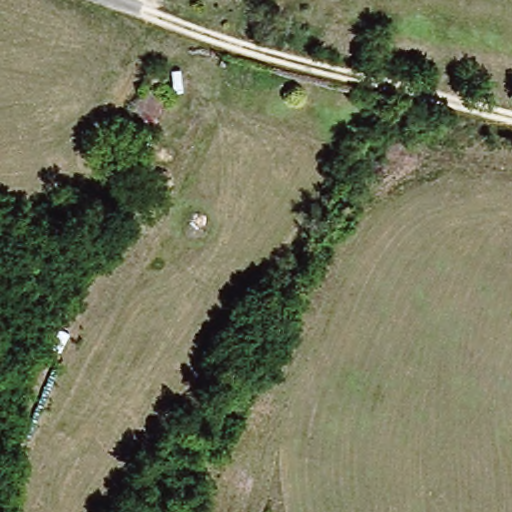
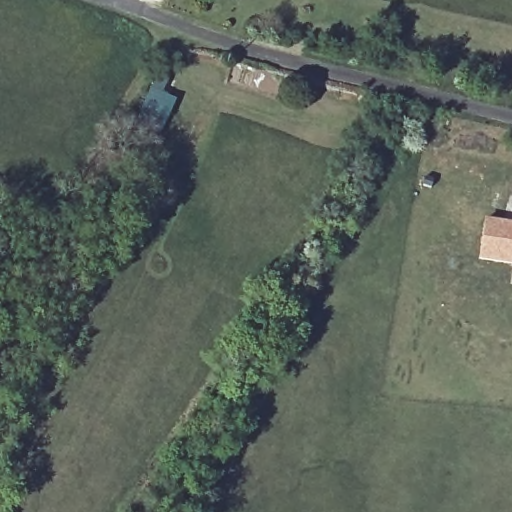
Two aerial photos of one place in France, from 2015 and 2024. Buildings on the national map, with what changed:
new [(512,224),(512,266),(479,261),(485,220),(512,224)]

